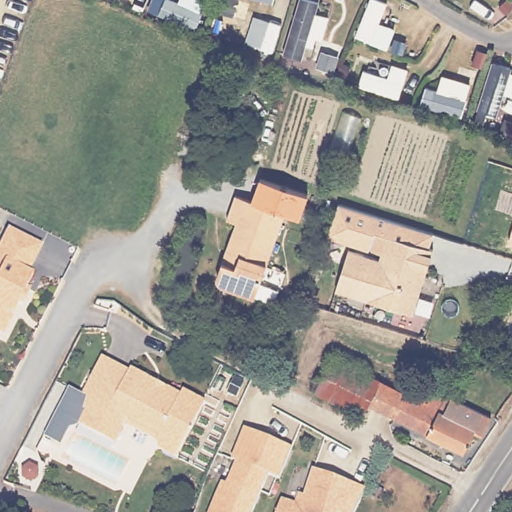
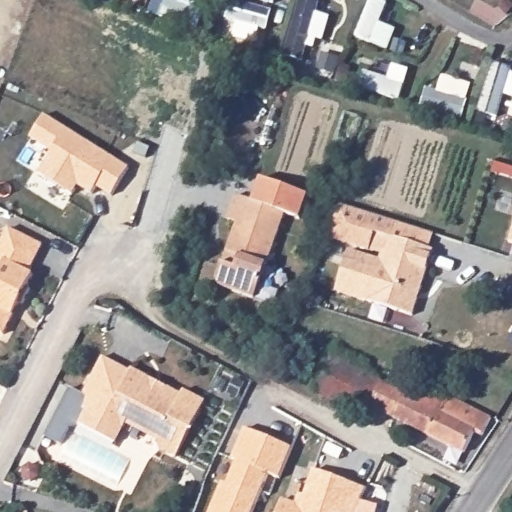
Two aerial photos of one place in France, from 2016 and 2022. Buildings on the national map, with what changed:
new [(44,115),(129,168),(111,195),(96,186),(91,194),(78,185),(71,194),(38,174),(52,151),(30,138),(44,115)]
unchanged [(221,285),(218,283),(216,278),(216,274),(221,260),(229,263),(234,250),(226,248),(237,220),(228,217),(237,193),(285,211),(252,297),(221,285)]
unchanged [(340,202),(438,236),(432,251),(437,252),(413,317),(333,288),(347,248),(387,263),(389,257),(372,250),(328,235),(340,202)]
unchanged [(508,242),(512,227),(512,243),(508,242)]
unchanged [(0,249),(9,232),(42,249),(28,275),(33,278),(26,290),(30,292),(22,307),(18,305),(2,336),(0,335),(0,249)]
unchanged [(85,403),(75,397),(101,349),(128,363),(129,361),(179,387),(182,381),(204,393),(174,449),(158,440),(155,431),(124,415),(121,421),(114,436),(78,417),(85,403)]
unchanged [(363,403),(359,411),(312,388),(329,355),(375,378),(363,403)]
unchanged [(402,391),(407,381),(400,377),(404,370),(422,379),(418,387),(428,392),(432,384),(447,392),(439,408),(447,412),(454,398),(486,413),(476,433),(469,430),(459,450),(363,403),(375,378),(402,391)]
unchanged [(263,441),(270,444),(272,439),(290,446),(279,477),(267,473),(252,512),(211,512),(222,483),(227,485),(236,461),(232,459),(244,428),(264,436),(263,441)]
unchanged [(277,512),(280,502),(301,509),(313,473),(367,491),(355,512),(277,512)]

